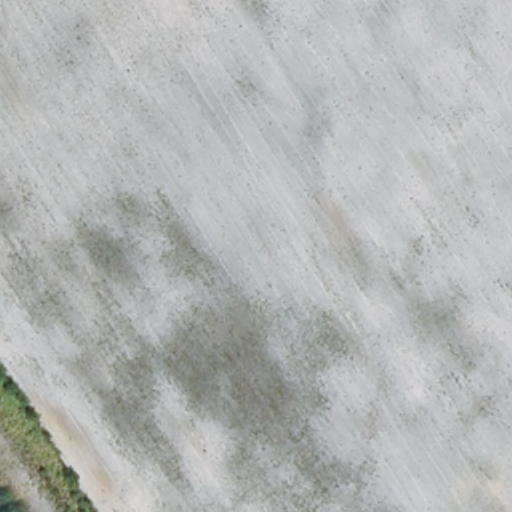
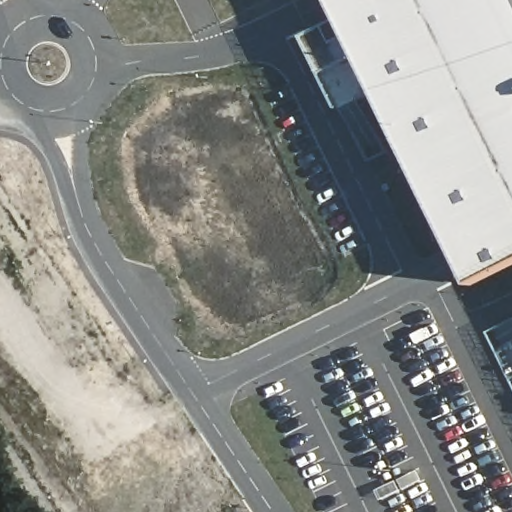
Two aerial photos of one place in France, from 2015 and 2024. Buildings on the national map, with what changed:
new [(475,285),(377,91),(343,109),(307,37),(344,19),(334,0),(512,0),(512,266),(475,285)]

